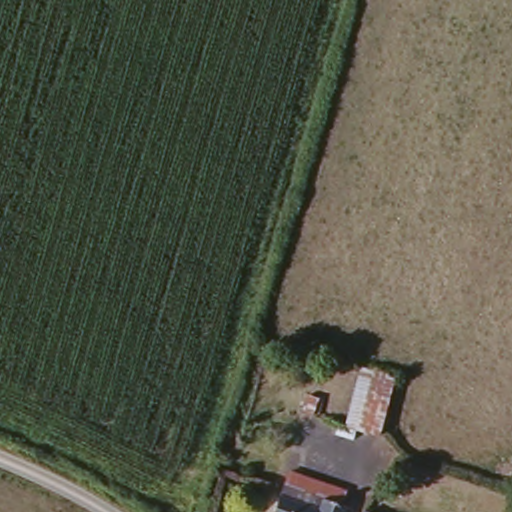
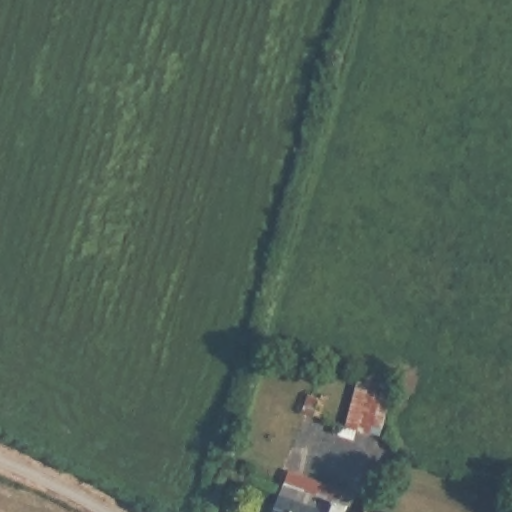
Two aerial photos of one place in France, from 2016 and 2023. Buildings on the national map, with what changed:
unchanged [(398,374),(381,436),(356,429),(353,439),(332,433),(335,420),(343,422),(361,364),(398,374)]
unchanged [(348,498),(343,512),(270,512),(282,474),(348,498)]

